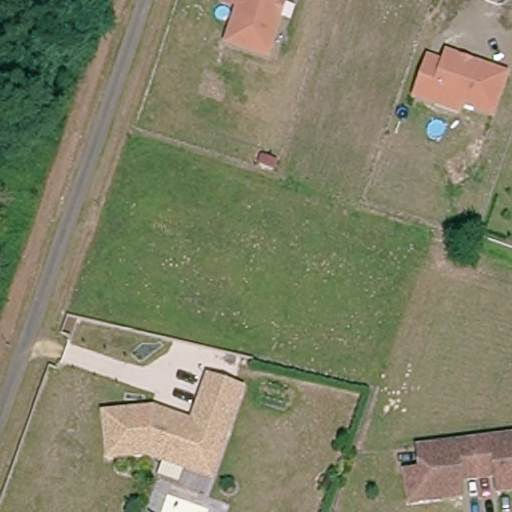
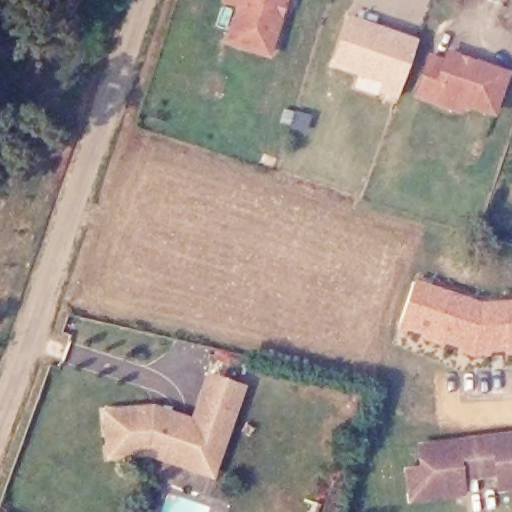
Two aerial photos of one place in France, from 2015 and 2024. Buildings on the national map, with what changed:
unchanged [(235,7),(220,2),(221,0),(287,0),(269,59),(223,44),(235,7)]
new [(417,39),(395,100),(374,92),(378,82),(328,65),(347,14),(417,39)]
unchanged [(427,53),(442,59),(445,49),(510,72),(495,118),(464,108),(461,116),(410,99),(427,53)]
new [(480,301),(512,300),(512,354),(470,357),(395,330),(415,278),(480,301)]
unchanged [(193,469),(145,453),(106,457),(102,413),(151,408),(169,413),(190,421),(207,375),(240,387),(224,433),(209,475),(193,469)]
unchanged [(406,485),(405,461),(420,460),(420,438),(512,432),(512,486),(493,487),(492,467),(458,468),(459,489),(439,491),(406,492),(406,485)]

